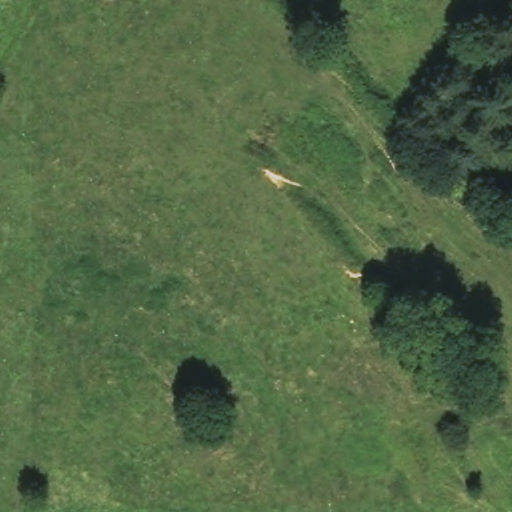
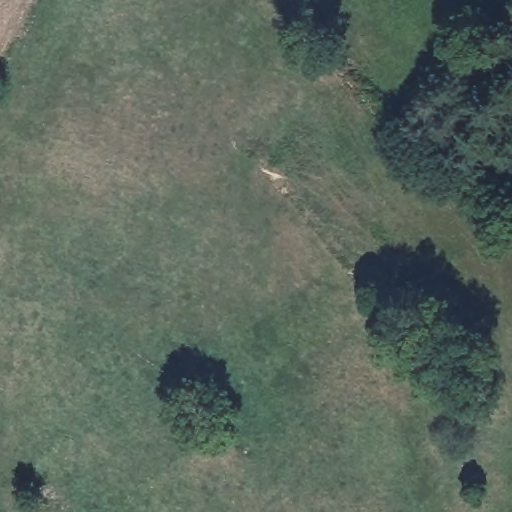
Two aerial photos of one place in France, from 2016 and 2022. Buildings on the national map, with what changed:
[]

